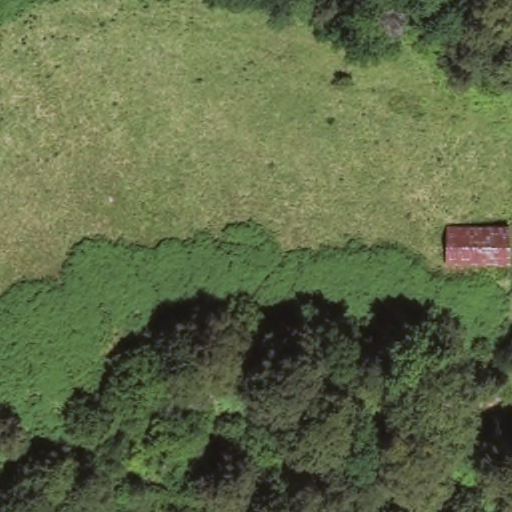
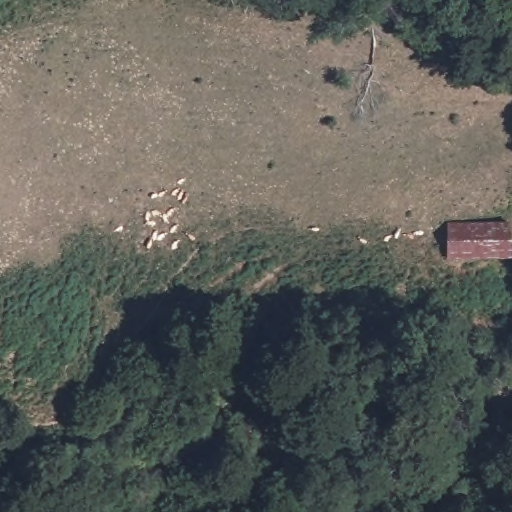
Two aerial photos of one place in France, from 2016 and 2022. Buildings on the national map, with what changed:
unchanged [(479,259),(448,260),(447,221),(511,219),(512,258),(479,259)]

